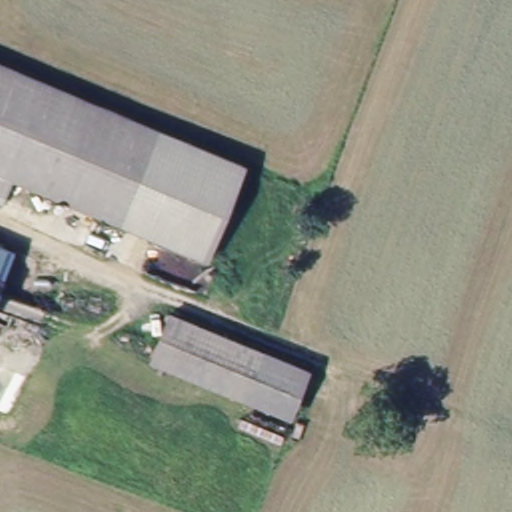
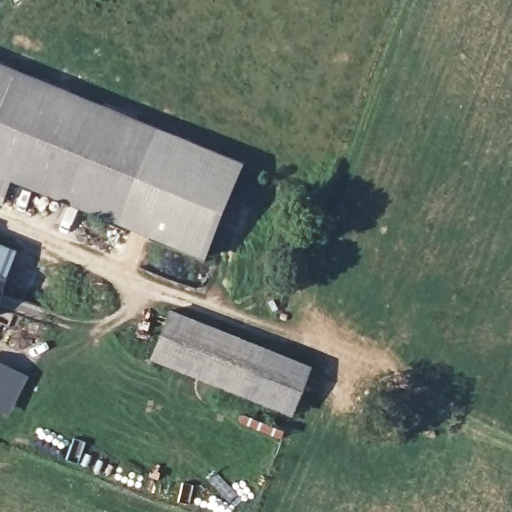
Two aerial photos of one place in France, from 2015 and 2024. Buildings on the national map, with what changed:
unchanged [(167,131),(130,219),(9,174),(0,171),(0,66),(167,131)]
unchanged [(246,162),(211,249),(130,219),(167,131),(246,162)]
unchanged [(9,174),(0,196),(0,171),(9,174)]
unchanged [(12,247),(2,273),(0,273),(0,242),(12,247)]
unchanged [(2,273),(0,283),(0,273),(2,273)]
unchanged [(0,308),(0,290),(46,305),(40,322),(19,314),(0,308)]
unchanged [(314,363),(306,386),(295,417),(286,414),(150,368),(156,350),(169,315),(250,342),(314,363)]
new [(29,374),(7,417),(0,414),(0,361),(29,374)]

